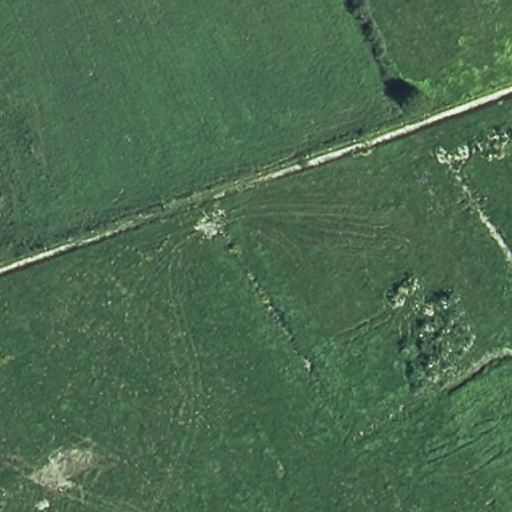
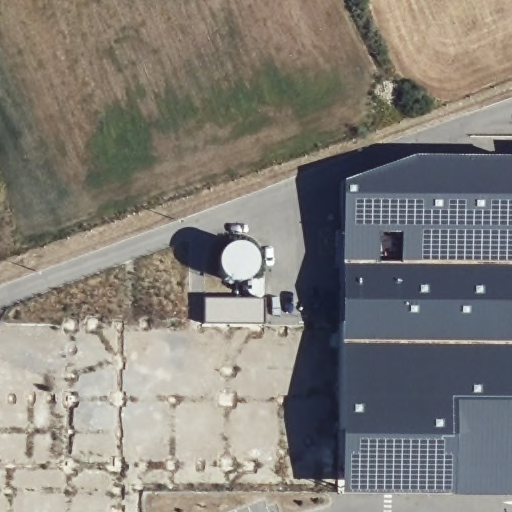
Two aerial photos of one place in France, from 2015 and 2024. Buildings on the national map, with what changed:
new [(415,156),(512,158),(512,497),(453,497),(341,495),(340,343),(342,263),(343,182),(415,156)]
new [(262,306),(262,328),(198,330),(200,304),(262,306)]

